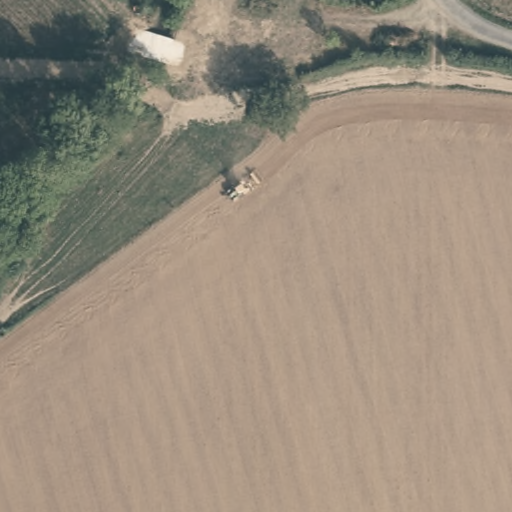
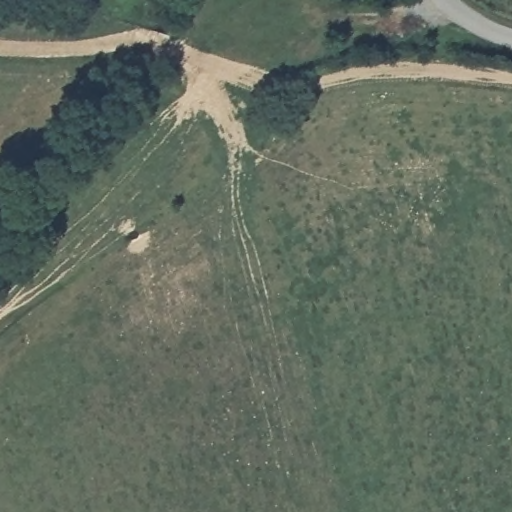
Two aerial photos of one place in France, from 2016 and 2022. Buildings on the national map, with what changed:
[]

